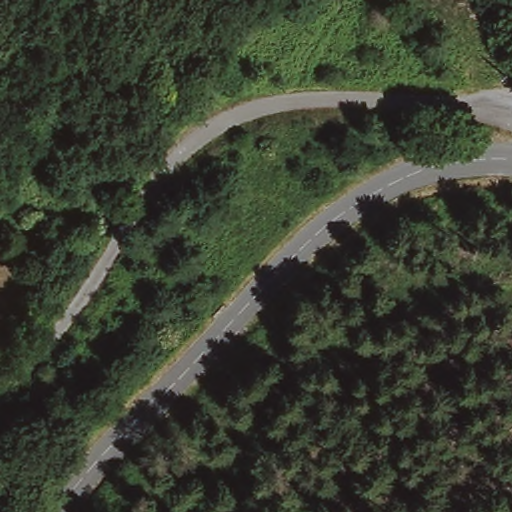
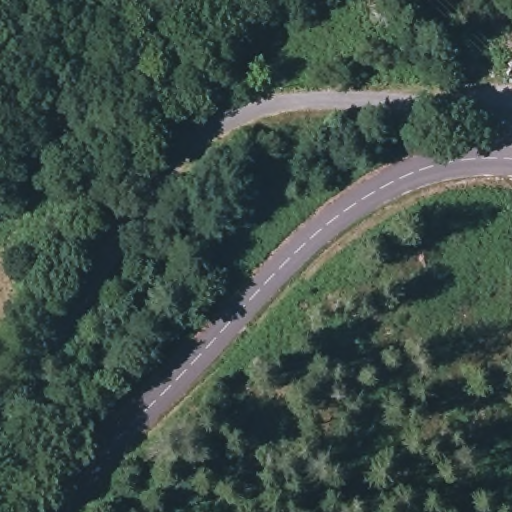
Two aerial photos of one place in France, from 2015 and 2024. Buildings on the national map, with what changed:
unchanged [(512,65),(512,76),(507,68),(512,65)]

